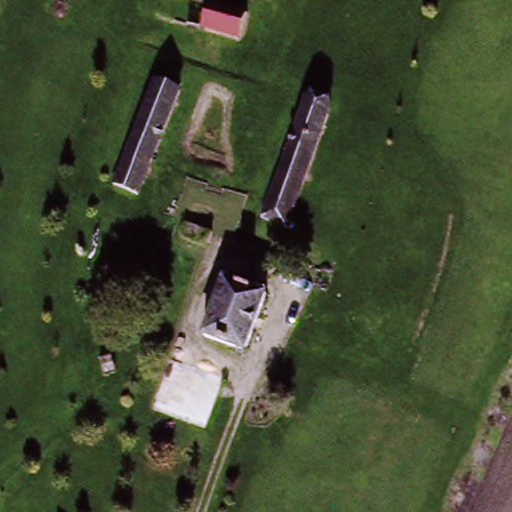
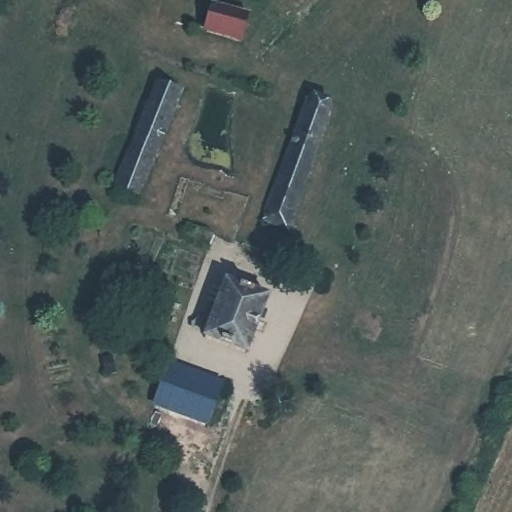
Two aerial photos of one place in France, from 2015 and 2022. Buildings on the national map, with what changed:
unchanged [(244,44),(158,21),(164,0),(170,0),(249,20),(244,44)]
unchanged [(116,188),(125,161),(150,84),(173,92),(148,169),(139,196),(116,188)]
unchanged [(268,219),(300,99),(325,106),(309,170),(315,174),(310,185),(305,183),(292,226),(268,219)]
unchanged [(229,286),(268,303),(246,357),(206,340),(229,286)]
new [(225,382),(210,429),(151,405),(169,361),(225,382)]

